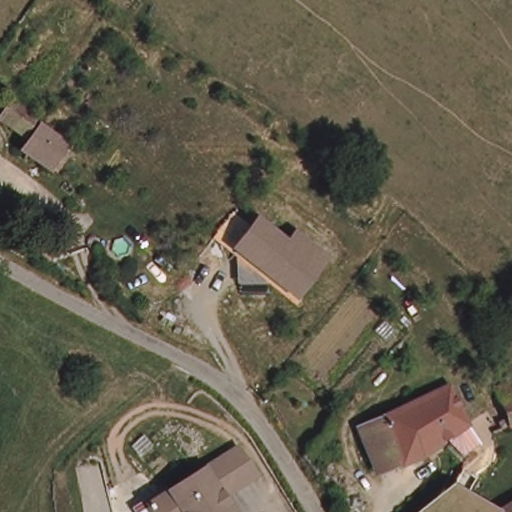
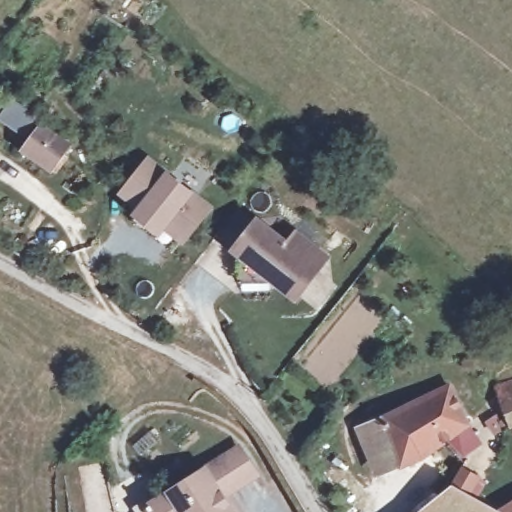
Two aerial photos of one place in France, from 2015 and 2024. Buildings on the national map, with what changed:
unchanged [(22,144),(0,127),(0,121),(10,107),(35,127),(22,144)]
unchanged [(71,157),(52,182),(22,160),(44,134),(71,157)]
new [(136,220),(143,210),(131,201),(134,197),(127,191),(150,161),(210,205),(187,237),(176,250),(136,220)]
unchanged [(237,252),(260,220),(287,241),(293,234),(328,258),(295,297),(237,252)]
unchanged [(458,456),(448,441),(450,439),(448,433),(405,461),(402,462),(382,420),(446,385),(464,422),(475,445),(458,456)]
unchanged [(495,393),(512,388),(512,431),(507,432),(495,393)]
unchanged [(380,473),(358,432),(382,420),(402,462),(380,473)]
unchanged [(262,480),(227,500),(235,512),(152,512),(145,502),(167,490),(207,465),(240,446),(262,480)]
unchanged [(448,485),(465,493),(451,512),(418,512),(448,485)]
unchanged [(465,493),(485,503),(502,512),(451,512),(465,493)]
unchanged [(512,505),(512,512),(502,512),(512,505)]

